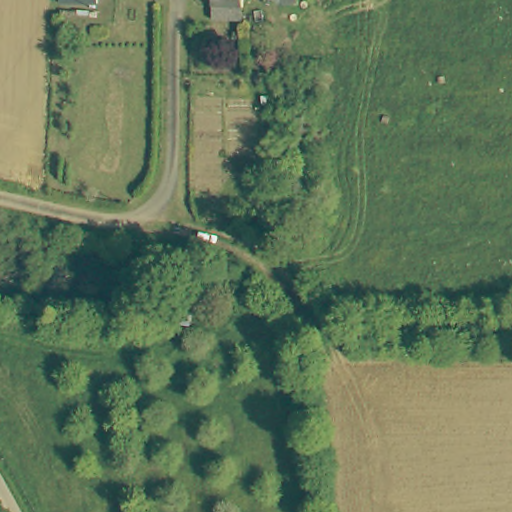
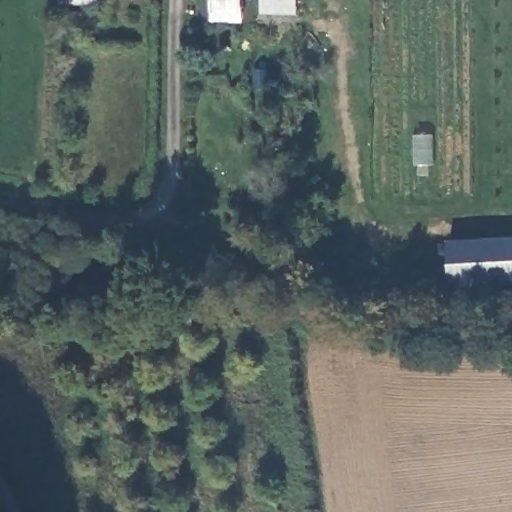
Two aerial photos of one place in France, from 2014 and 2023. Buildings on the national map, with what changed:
unchanged [(55,0),(98,0),(98,5),(55,3),(55,0)]
unchanged [(241,1),(241,17),(228,17),(208,17),(209,9),(209,0),(241,1)]
unchanged [(299,6),(264,5),(264,0),(300,0),(300,5),(299,6)]
unchanged [(250,87),(252,83),(256,81),(257,80),(261,80),(263,80),(265,81),(268,84),(271,87),(271,92),(269,96),(266,100),(262,101),(257,101),(253,99),(250,96),(249,91),(250,87)]
new [(451,288),(448,240),(512,237),(512,285),(451,288)]

